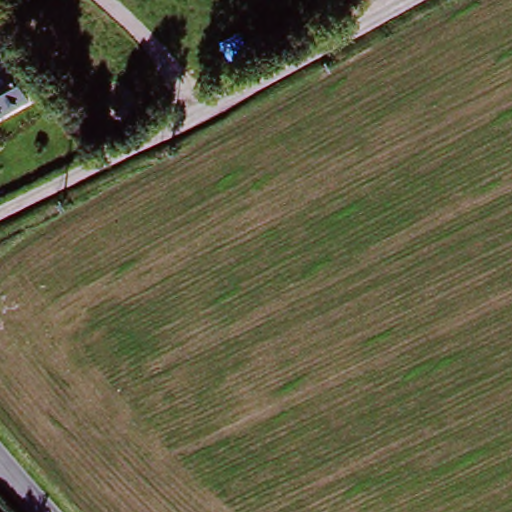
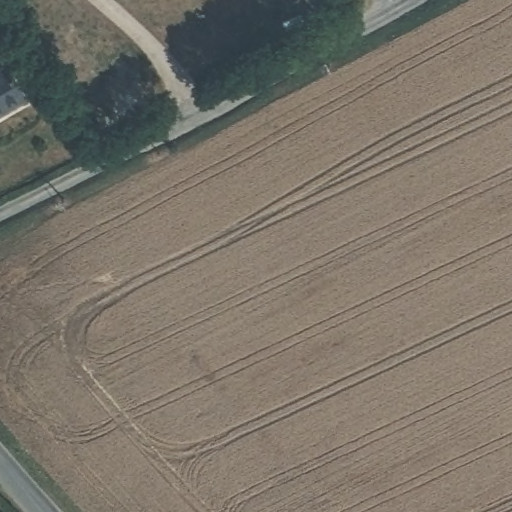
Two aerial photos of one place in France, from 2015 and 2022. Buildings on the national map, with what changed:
unchanged [(0,115),(0,70),(8,65),(28,97),(0,115)]

